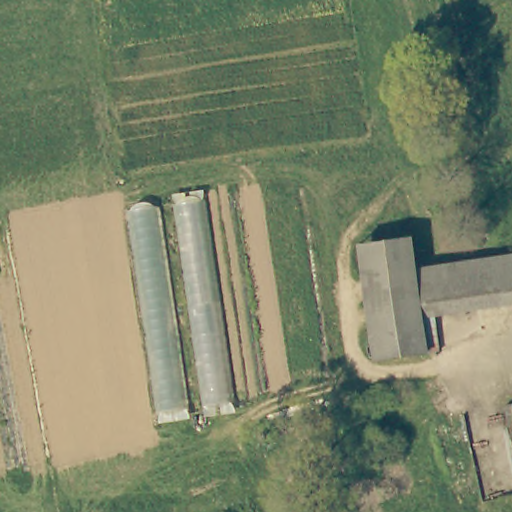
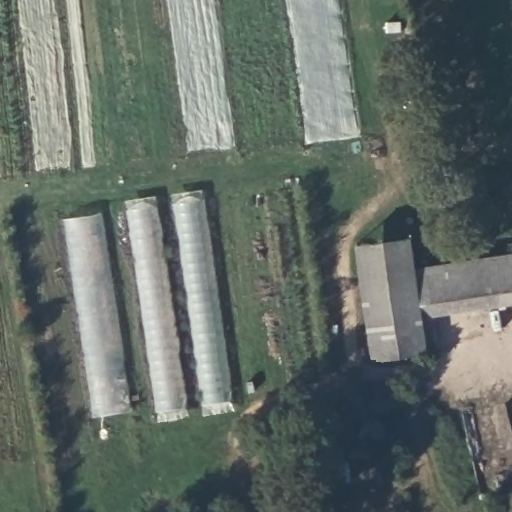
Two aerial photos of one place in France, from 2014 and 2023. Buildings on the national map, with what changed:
unchanged [(125,210),(174,203),(172,195),(201,191),(234,410),(157,423),(125,210)]
new [(92,420),(64,220),(101,213),(130,413),(92,420)]
unchanged [(413,230),(416,265),(419,296),(424,343),(370,349),(359,236),(413,230)]
unchanged [(504,288),(479,291),(419,296),(416,265),(472,259),(497,257),(512,256),(512,288),(504,288)]

